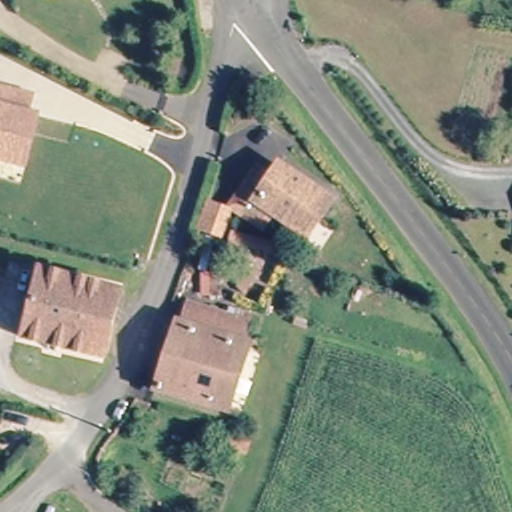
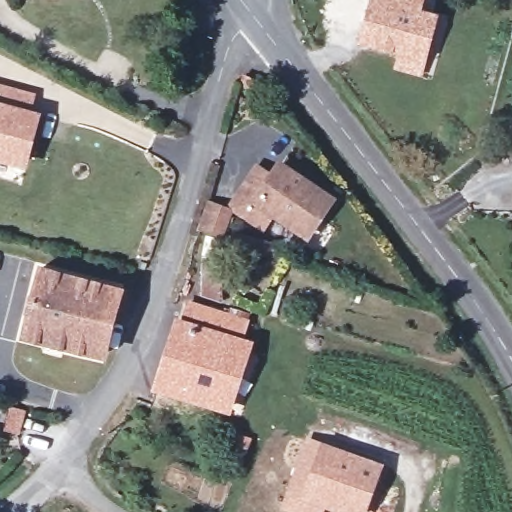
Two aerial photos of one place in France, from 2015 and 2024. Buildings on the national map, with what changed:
new [(425,0),(423,8),(441,14),(423,77),(393,69),(397,55),(358,45),(369,0),(425,0)]
unchanged [(0,110),(0,91),(37,100),(32,117),(0,110)]
unchanged [(0,162),(0,110),(32,117),(37,119),(22,168),(0,162)]
unchanged [(290,230),(271,216),(262,227),(246,216),(242,213),(232,206),(260,171),(273,181),(283,167),(331,204),(317,222),(303,240),(290,230)]
unchanged [(212,199),(232,206),(242,213),(228,242),(223,241),(217,258),(201,251),(207,237),(200,233),(212,199)]
unchanged [(104,358),(31,340),(47,276),(49,270),(122,288),(121,292),(104,358)]
unchanged [(191,306),(247,322),(241,344),(249,347),(229,412),(157,392),(178,327),(185,328),(191,306)]
new [(322,443),(385,465),(368,512),(336,512),(326,508),(324,512),(287,512),(281,510),(307,437),(322,443)]

